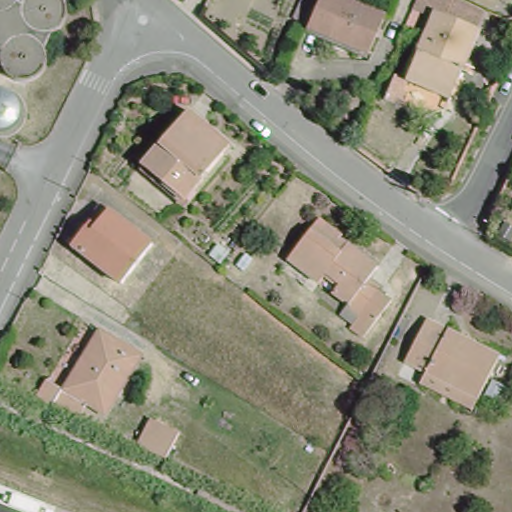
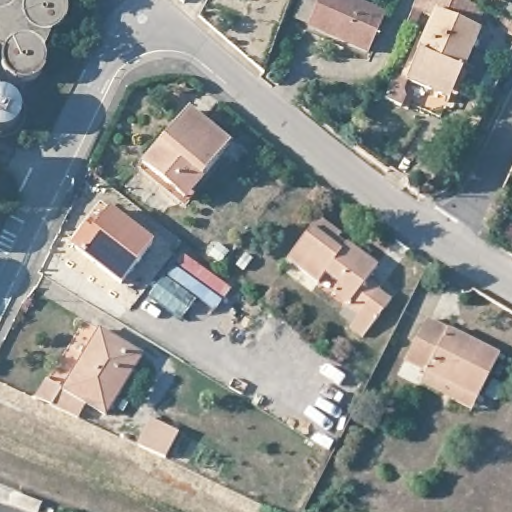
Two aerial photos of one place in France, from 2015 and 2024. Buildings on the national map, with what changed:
unchanged [(66,9),(65,15),(64,21),(61,25),(56,30),(50,35),(43,37),(41,38),(40,40),(41,43),(44,47),(45,54),(46,60),(45,67),(41,73),(37,77),(32,81),(26,84),(20,84),(13,83),(7,80),(1,76),(0,75),(0,0),(63,0),(65,2),(66,9)]
unchanged [(301,30),(313,0),(338,0),(396,26),(380,65),(317,37),(301,30)]
unchanged [(418,0),(466,0),(490,11),(474,32),(427,12),(424,20),(413,15),(418,0)]
unchanged [(443,104),(397,84),(424,20),(427,12),(474,32),(443,104)]
unchanged [(26,131),(22,135),(16,139),(7,140),(1,139),(0,138),(0,97),(1,96),(7,95),(13,95),(15,96),(20,99),(25,102),(28,107),(30,114),(30,120),(29,125),(26,131)]
unchanged [(176,200),(134,166),(180,109),(220,143),(176,200)]
unchanged [(65,250),(82,225),(96,205),(108,214),(150,245),(115,287),(65,250)]
unchanged [(343,330),(353,315),(340,304),(349,291),(322,273),(313,286),(282,266),(306,234),(335,255),(342,247),(371,267),(363,278),(373,284),(369,290),(386,301),(359,340),(343,330)]
unchanged [(476,393),(421,373),(402,367),(420,323),(492,348),(495,352),(476,393)]
unchanged [(95,329),(132,351),(97,411),(80,402),(77,410),(75,414),(52,404),(55,399),(95,329)]
unchanged [(150,415),(183,431),(168,463),(133,445),(150,415)]

